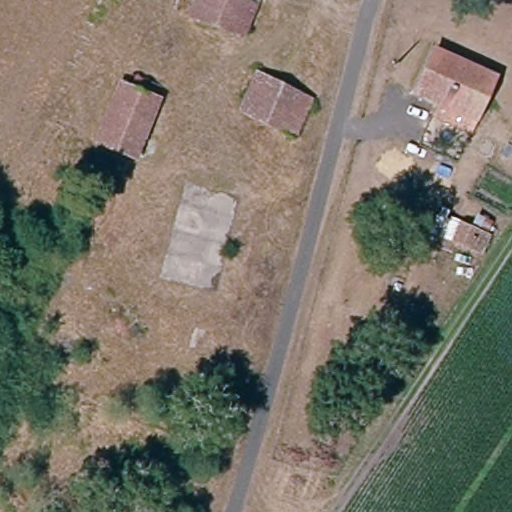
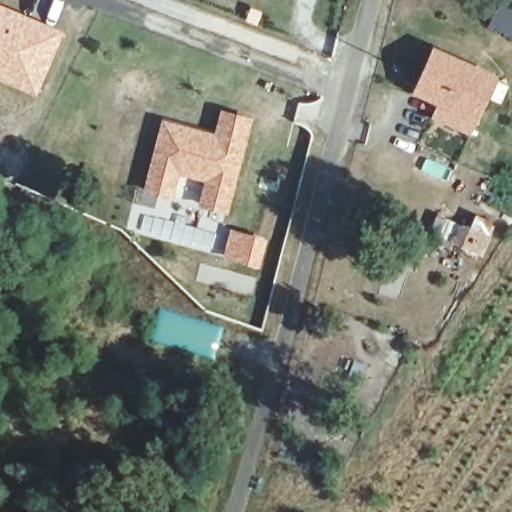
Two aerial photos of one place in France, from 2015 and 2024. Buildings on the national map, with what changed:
demolished [(263,8),(250,43),(198,20),(206,0),(245,0),(263,8)]
new [(42,74),(0,57),(0,9),(59,33),(42,74)]
unchanged [(500,77),(473,135),(439,121),(443,105),(421,92),(439,50),(500,77)]
demolished [(255,67),(310,98),(289,134),(234,106),(255,67)]
demolished [(119,81),(154,95),(131,151),(96,136),(119,81)]
new [(217,137),(224,113),(251,120),(245,141),(243,149),(233,186),(177,172),(171,198),(147,191),(164,123),(217,137)]
unchanged [(455,244),(461,230),(471,235),(477,222),(490,228),(485,241),(487,242),(480,256),(455,244)]

